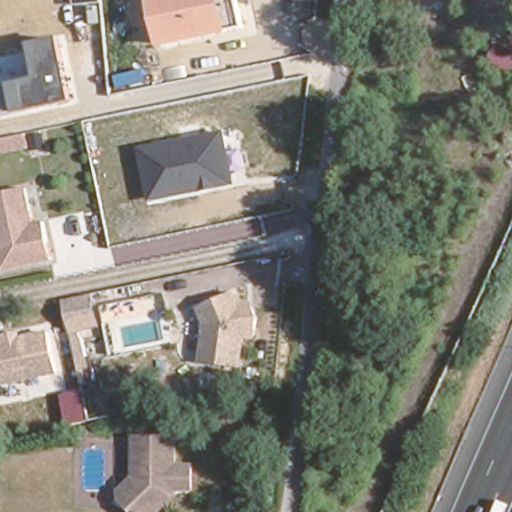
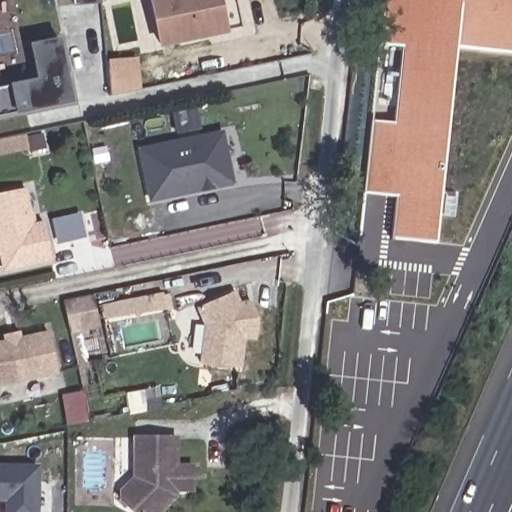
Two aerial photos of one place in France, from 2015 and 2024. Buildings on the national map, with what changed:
new [(73,6),(73,0),(101,0),(101,3),(73,6)]
unchanged [(228,34),(157,49),(147,0),(237,0),(242,26),(227,30),(228,34)]
new [(435,243),(390,238),(394,196),(364,193),(372,119),(394,121),(403,46),(380,44),(385,0),(512,0),(512,52),(455,46),(435,243)]
unchanged [(36,79),(28,44),(59,38),(73,103),(15,114),(0,117),(0,86),(9,85),(36,79)]
unchanged [(149,202),(137,148),(223,130),(235,185),(149,202)]
new [(26,136),(28,148),(0,154),(0,142),(26,136)]
unchanged [(20,190),(27,224),(37,221),(45,258),(1,267),(0,262),(0,194),(20,190)]
unchanged [(208,326),(200,307),(236,293),(247,322),(241,372),(203,367),(208,326)]
unchanged [(90,299),(96,328),(69,333),(63,304),(90,299)]
unchanged [(1,335),(13,333),(15,340),(42,333),(51,372),(0,383),(0,343),(3,342),(1,335)]
new [(62,395),(83,392),(88,422),(66,425),(62,395)]
unchanged [(177,461),(193,459),(196,483),(178,485),(168,491),(170,498),(157,511),(155,512),(142,512),(123,493),(123,485),(137,472),(133,434),(174,430),(177,461)]
new [(0,502),(0,464),(39,465),(39,512),(5,512),(5,502),(0,502)]

